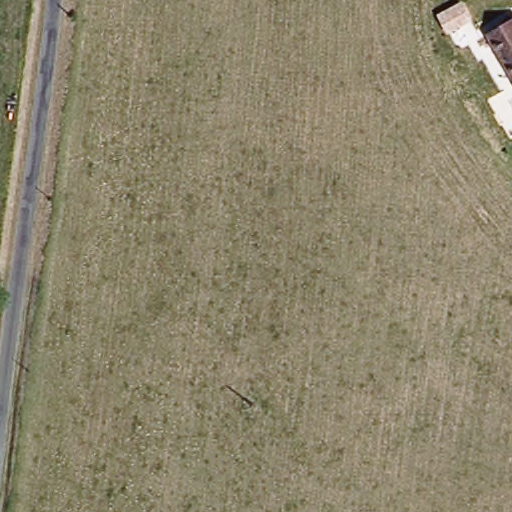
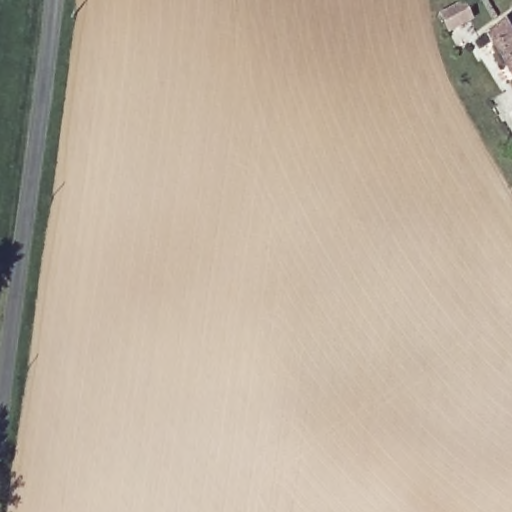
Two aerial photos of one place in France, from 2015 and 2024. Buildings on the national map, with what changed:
unchanged [(483,41),(512,21),(512,84),(483,41)]

